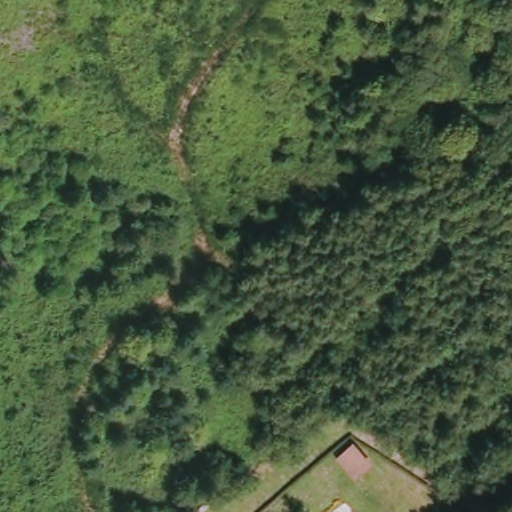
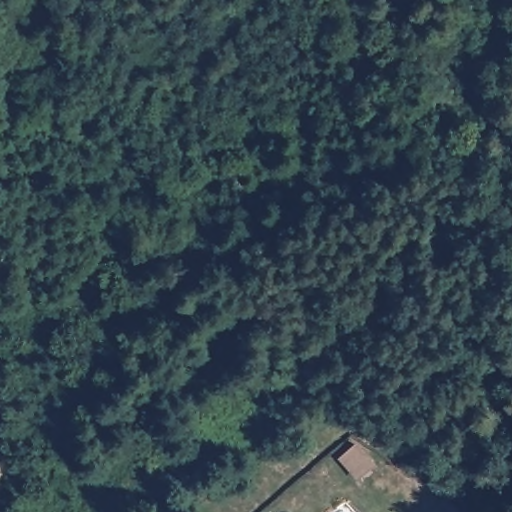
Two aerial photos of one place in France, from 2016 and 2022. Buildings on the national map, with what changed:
unchanged [(373,459),(356,471),(344,456),(342,453),(358,439),(361,442),(373,459)]

